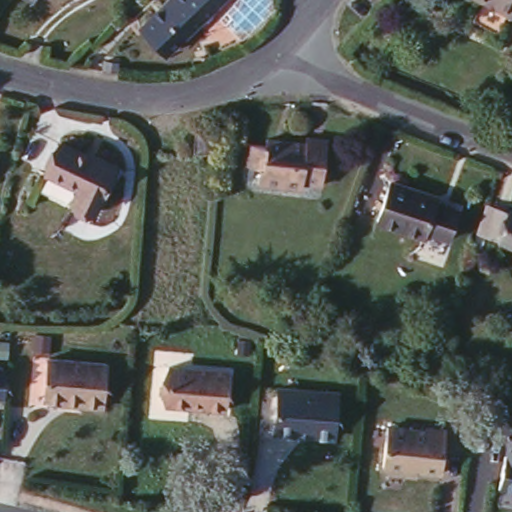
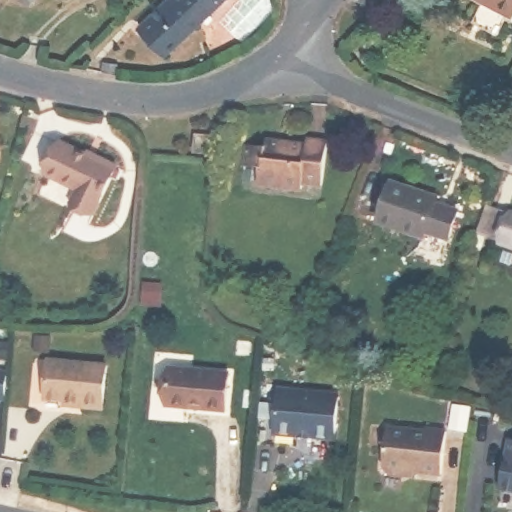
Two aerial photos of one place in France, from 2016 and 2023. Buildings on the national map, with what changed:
unchanged [(161,0),(214,0),(160,51),(135,25),(161,0)]
unchanged [(512,15),(511,16),(507,13),(497,30),(475,20),(483,3),(478,0),(512,0),(512,15)]
unchanged [(196,150),(199,133),(216,134),(215,153),(196,150)]
unchanged [(262,148),(264,142),(305,146),(306,141),(325,143),(320,187),(301,184),(300,190),(259,185),(261,169),(242,166),(245,146),(262,148)]
unchanged [(98,213),(75,201),(81,187),(50,171),(65,142),(89,154),(91,151),(97,154),(121,166),(98,213)]
unchanged [(430,193),(428,198),(449,206),(440,235),(420,228),(416,237),(367,221),(382,178),(430,193)]
unchanged [(505,207),(512,210),(512,245),(495,239),(505,207)]
unchanged [(42,394),(44,359),(102,364),(100,401),(42,394)]
unchanged [(160,405),(163,364),(225,368),(223,410),(160,405)]
unchanged [(0,401),(0,373),(3,373),(1,401),(0,401)]
unchanged [(276,387),(337,391),(333,437),(273,432),(276,387)]
unchanged [(380,471),(385,421),(442,427),(440,479),(380,471)]
unchanged [(506,437),(512,438),(512,486),(498,484),(506,437)]

